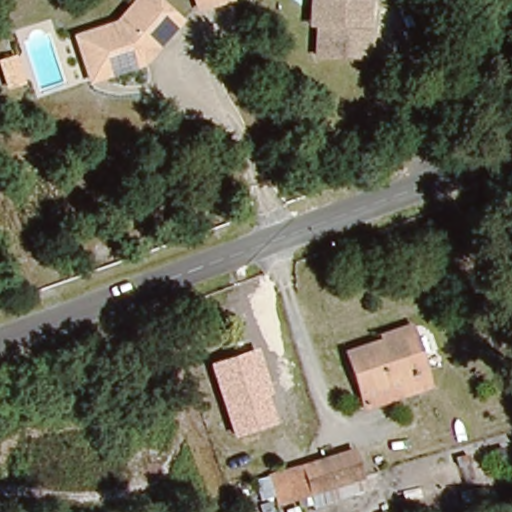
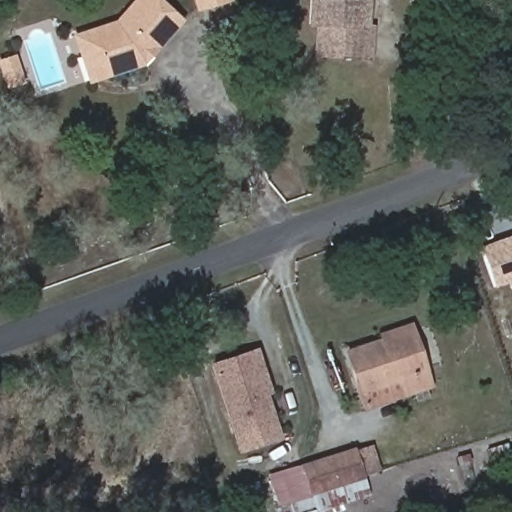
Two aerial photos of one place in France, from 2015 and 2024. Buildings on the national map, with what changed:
unchanged [(90,34),(113,26),(134,0),(160,0),(181,17),(144,64),(105,76),(91,80),(77,38),(90,34)]
unchanged [(202,14),(198,0),(230,0),(231,5),(202,14)]
unchanged [(356,0),(356,2),(370,4),(377,4),(374,31),(363,29),(360,60),(324,56),(325,25),(330,25),(333,0),(356,0)]
unchanged [(7,80),(0,83),(0,57),(7,80)]
new [(512,282),(495,288),(481,248),(512,237),(512,282)]
unchanged [(410,331),(432,389),(401,401),(394,384),(361,395),(347,355),(410,331)]
unchanged [(273,395),(266,396),(276,426),(233,441),(208,364),(257,348),(273,395)]
unchanged [(367,493),(313,509),(309,497),(286,502),(279,471),(352,446),(367,493)]

